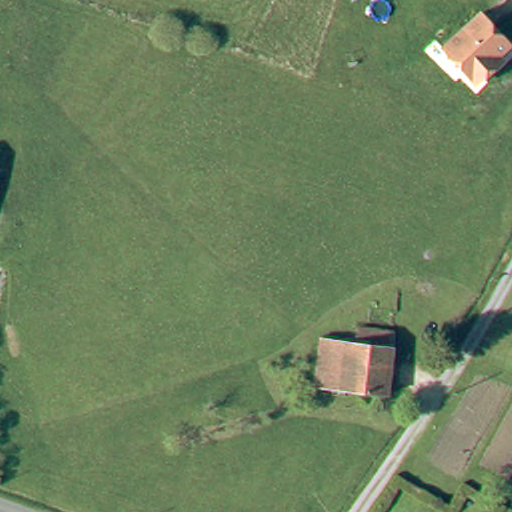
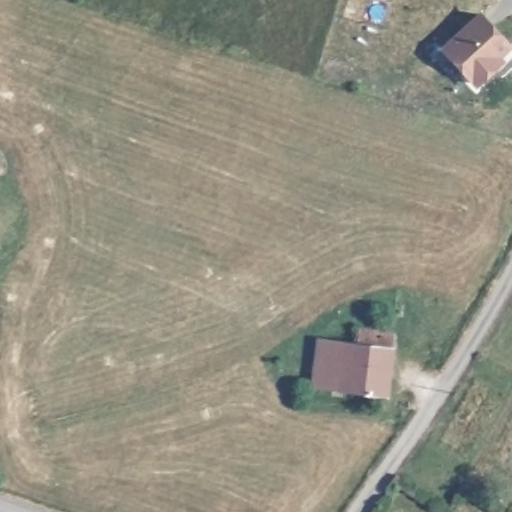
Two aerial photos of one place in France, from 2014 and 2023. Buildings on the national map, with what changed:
unchanged [(488,71),(473,86),(439,51),(476,16),(505,46),(492,58),(496,63),(488,71)]
unchanged [(316,398),(319,350),(357,352),(372,352),(392,354),(390,403),(316,398)]

